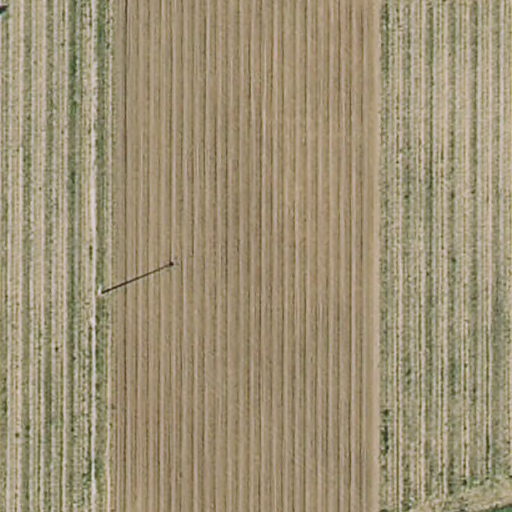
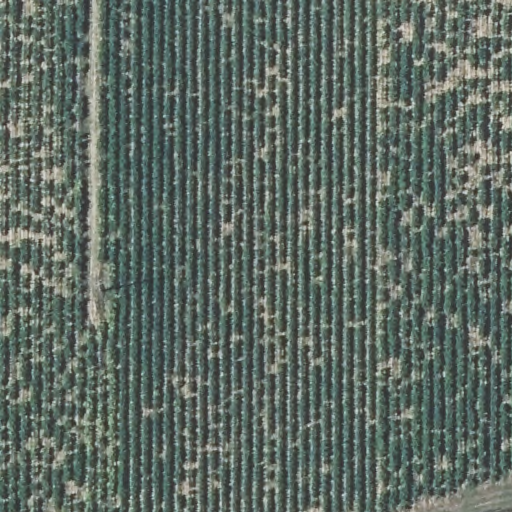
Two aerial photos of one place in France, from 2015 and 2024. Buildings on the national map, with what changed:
[]

